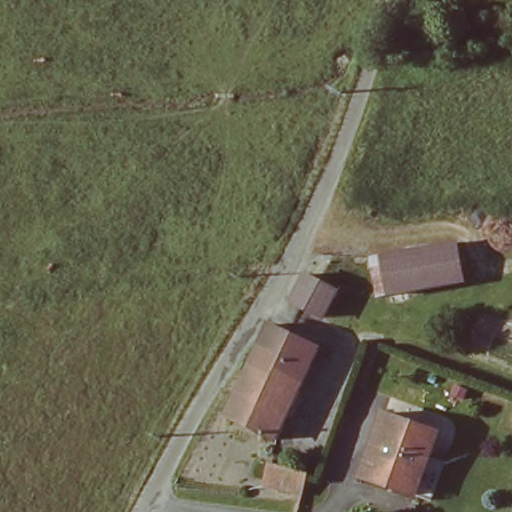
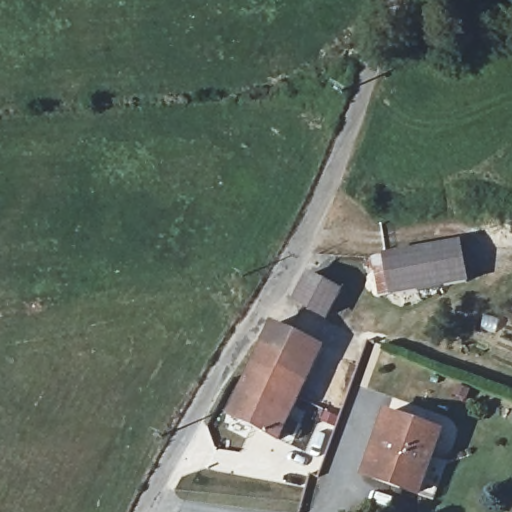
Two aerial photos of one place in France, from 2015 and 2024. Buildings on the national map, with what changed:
unchanged [(468,283),(390,298),(383,255),(395,253),(462,240),(468,283)]
unchanged [(309,277),(347,295),(330,325),(294,306),(309,277)]
unchanged [(272,324),(322,346),(312,366),(263,343),(272,324)]
unchanged [(312,366),(279,436),(229,413),(263,343),(312,366)]
unchanged [(362,473),(387,410),(441,429),(418,494),(362,473)]
unchanged [(267,482),(274,461),(312,474),(305,493),(267,482)]

